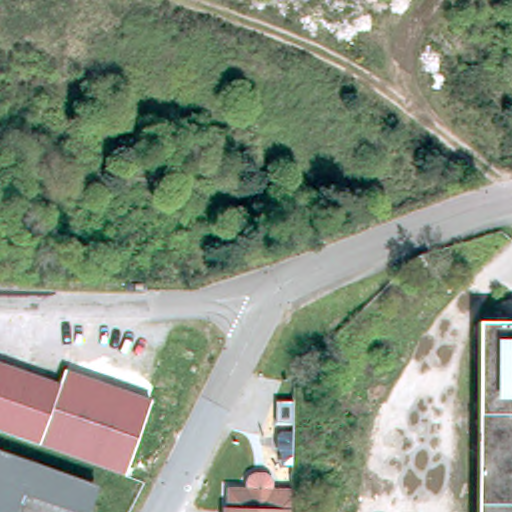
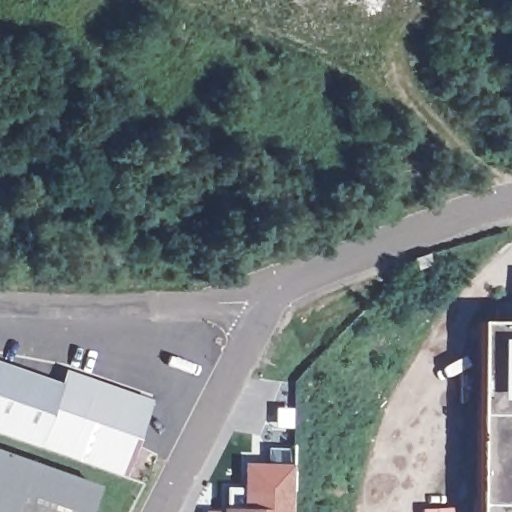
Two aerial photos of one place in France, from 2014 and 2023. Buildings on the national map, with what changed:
unchanged [(427,256),(430,265),(417,269),(414,261),(427,256)]
unchanged [(474,323),(512,323),(512,512),(472,512),(474,323)]
unchanged [(59,382),(63,368),(151,398),(126,476),(0,433),(0,365),(59,382)]
unchanged [(38,458),(38,461),(37,463),(31,480),(21,509),(15,512),(5,512),(0,510),(0,445),(38,458)]
unchanged [(48,467),(94,483),(88,500),(31,480),(37,463),(48,467)]
unchanged [(292,512),(228,512),(228,503),(229,503),(229,483),(248,484),(248,476),(251,471),(256,469),(267,469),(271,472),(274,477),(274,484),(293,484),(292,512)]

